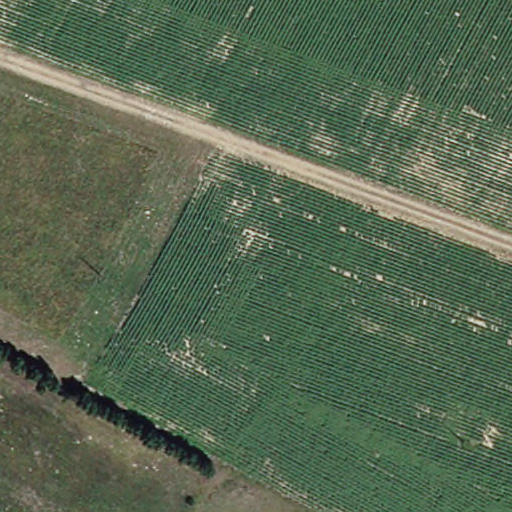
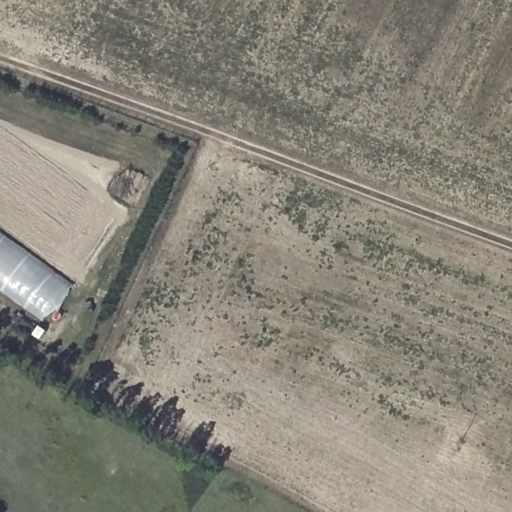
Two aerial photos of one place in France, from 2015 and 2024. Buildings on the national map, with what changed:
new [(44,322),(0,291),(0,232),(70,282),(44,322)]

